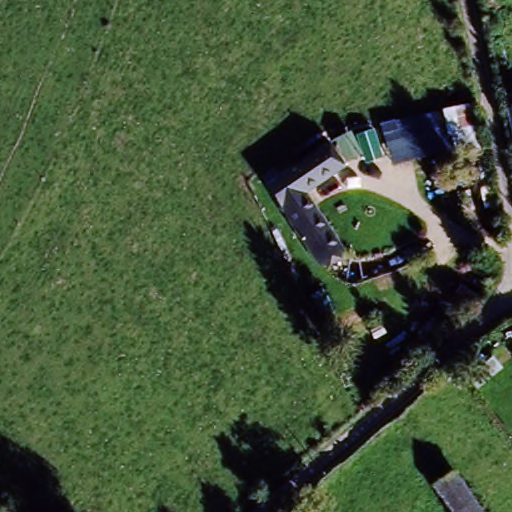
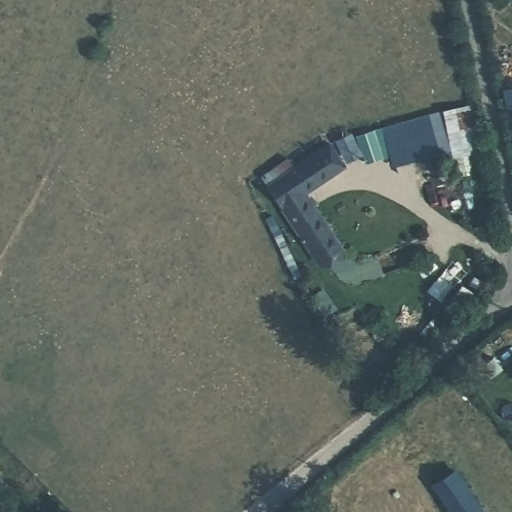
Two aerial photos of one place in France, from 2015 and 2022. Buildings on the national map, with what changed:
unchanged [(509,99),(512,98),(512,110),(509,99)]
unchanged [(465,104),(477,184),(452,188),(443,140),(411,145),(417,169),(395,177),(384,120),(465,104)]
unchanged [(337,169),(305,194),(282,210),(267,191),(258,179),(282,164),(291,174),(324,149),(337,169)]
unchanged [(305,194),(349,250),(326,269),(282,210),(305,194)]
unchanged [(432,481),(451,468),(480,512),(452,512),(432,481)]

